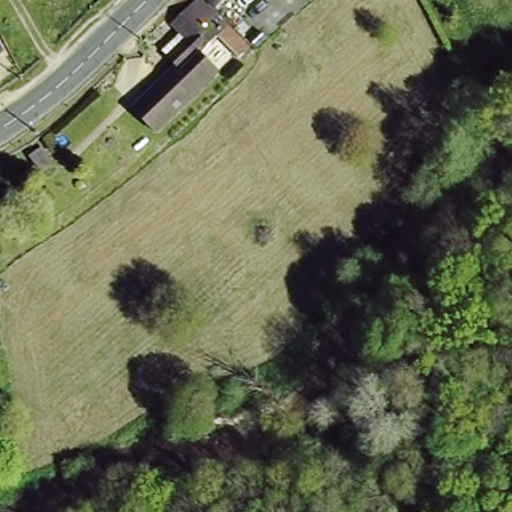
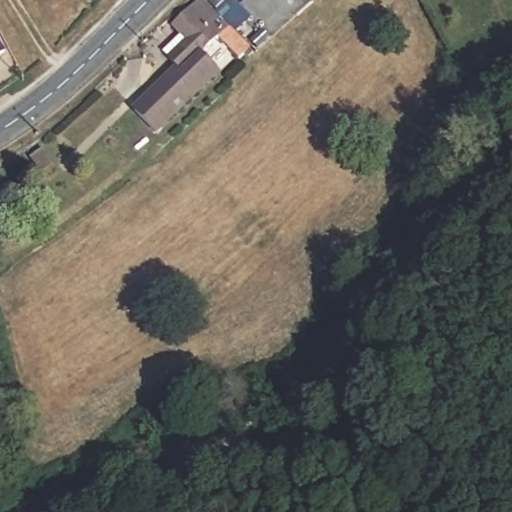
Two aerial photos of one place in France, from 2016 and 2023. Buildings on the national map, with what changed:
unchanged [(218,34),(198,54),(215,71),(204,82),(179,56),(173,60),(155,40),(196,0),(199,0),(225,26),(251,52),(243,60),(218,34)]
unchanged [(204,0),(223,0),(213,10),(204,0)]
unchanged [(7,54),(0,59),(0,42),(7,54)]
unchanged [(179,56),(204,82),(153,130),(131,107),(176,65),(173,60),(179,56)]
unchanged [(23,152),(36,144),(45,157),(32,165),(23,152)]

